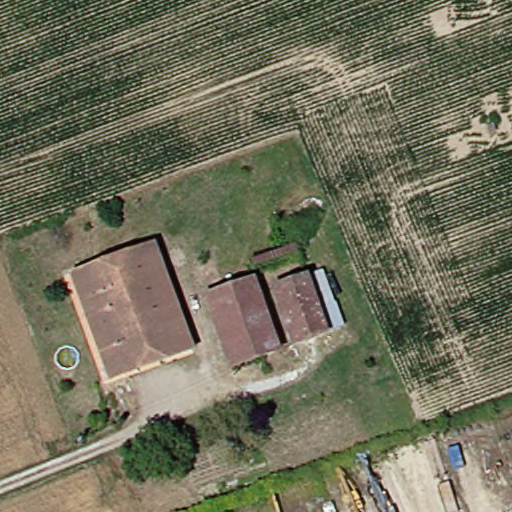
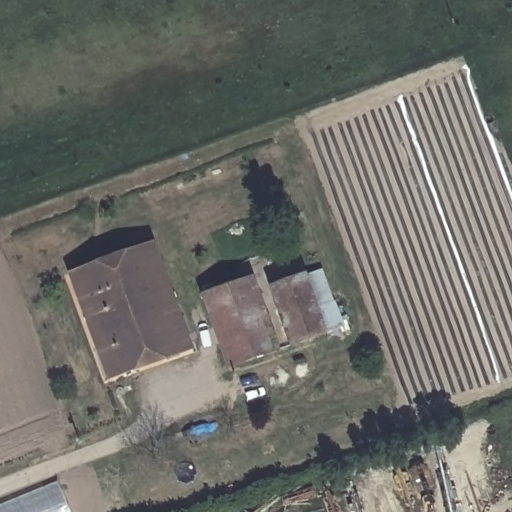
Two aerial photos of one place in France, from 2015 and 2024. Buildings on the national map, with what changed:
unchanged [(181,347),(99,377),(59,271),(142,242),(181,347)]
unchanged [(255,287),(282,277),(287,275),(301,269),(314,300),(312,301),(323,325),(302,333),(275,344),(255,287)]
unchanged [(244,277),(268,347),(223,364),(197,295),(244,277)]
new [(69,512),(0,512),(0,506),(57,483),(69,512)]

